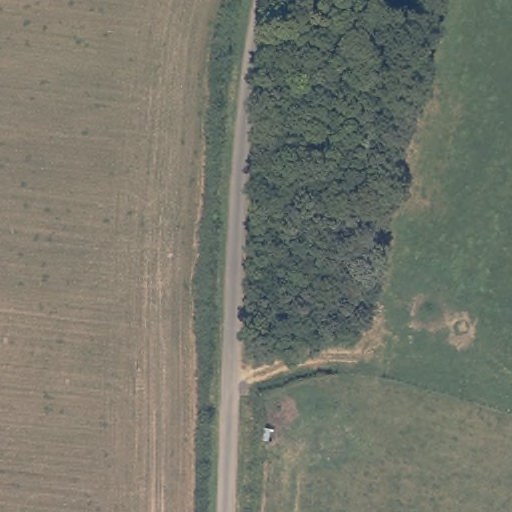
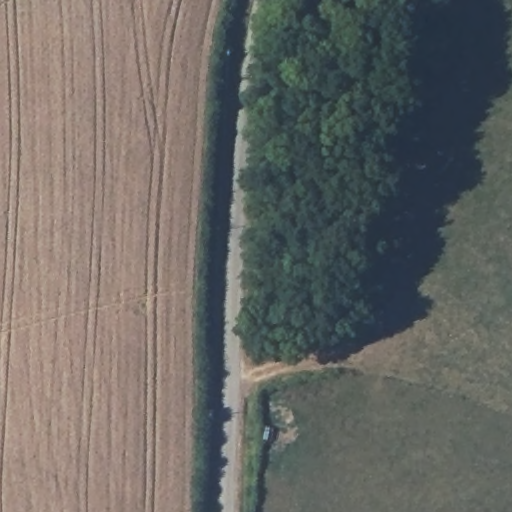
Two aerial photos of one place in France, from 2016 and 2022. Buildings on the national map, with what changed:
[]

